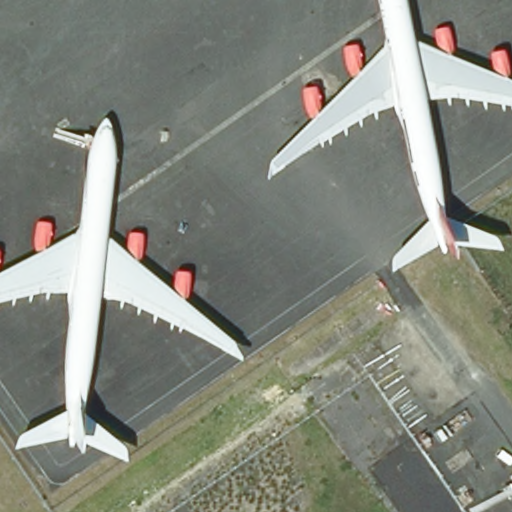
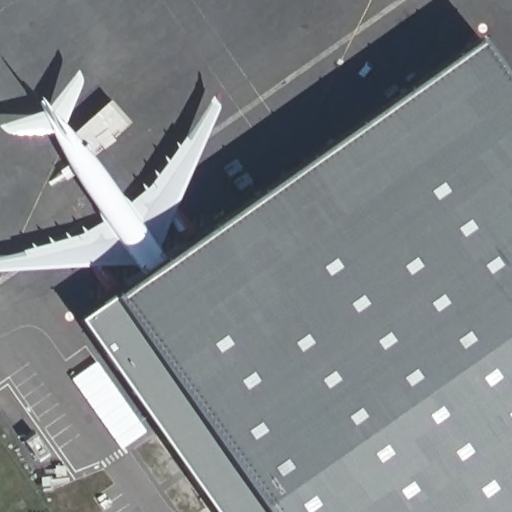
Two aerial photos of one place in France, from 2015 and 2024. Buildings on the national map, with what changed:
new [(512,82),(512,512),(215,512),(79,319),(113,296),(480,37),(512,82)]

